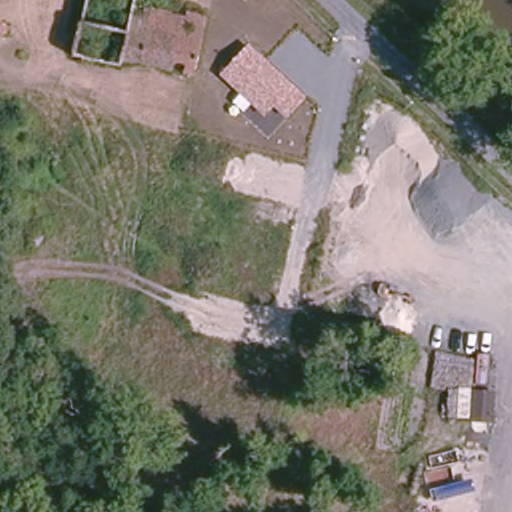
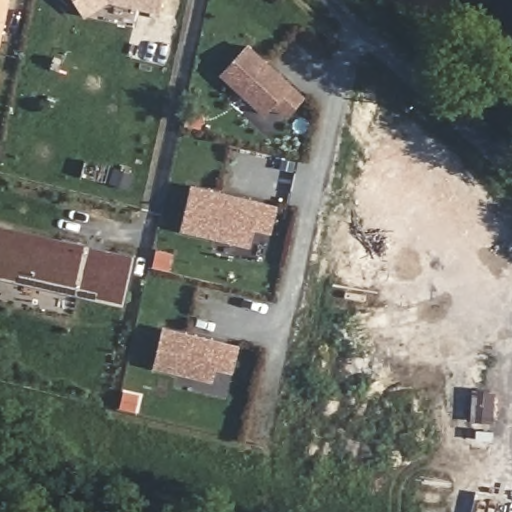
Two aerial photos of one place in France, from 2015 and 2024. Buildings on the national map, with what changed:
new [(1,50),(0,50),(0,0),(12,0),(1,50)]
new [(164,12),(112,0),(86,15),(77,0),(167,0),(164,12)]
demolished [(120,61),(134,4),(179,16),(180,12),(203,16),(191,75),(120,61)]
unchanged [(274,107),(264,117),(219,74),(249,43),(306,97),(286,119),(274,107)]
new [(189,186),(277,205),(271,233),(254,230),(249,247),(180,231),(189,186)]
new [(0,276),(0,226),(133,254),(123,300),(74,289),(0,276)]
new [(239,344),(232,374),(215,370),(212,382),(151,368),(161,326),(239,344)]
demolished [(483,512),(487,493),(512,499),(512,502),(510,512),(483,512)]

